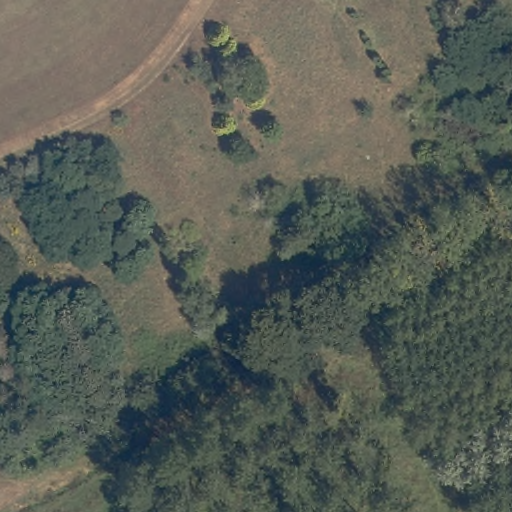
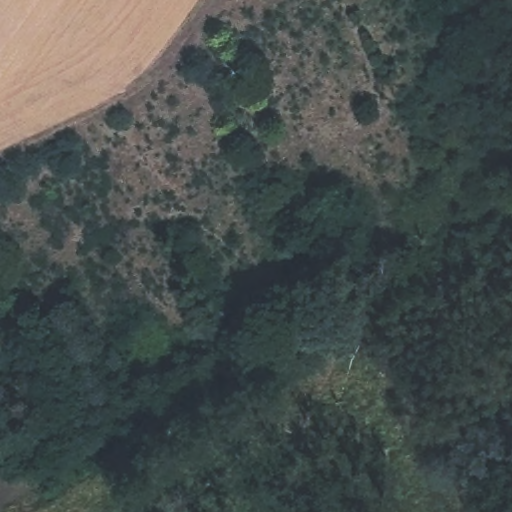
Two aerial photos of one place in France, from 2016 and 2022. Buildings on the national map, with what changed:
[]

